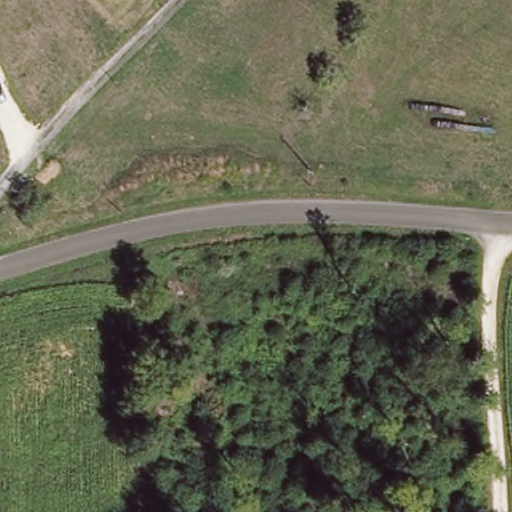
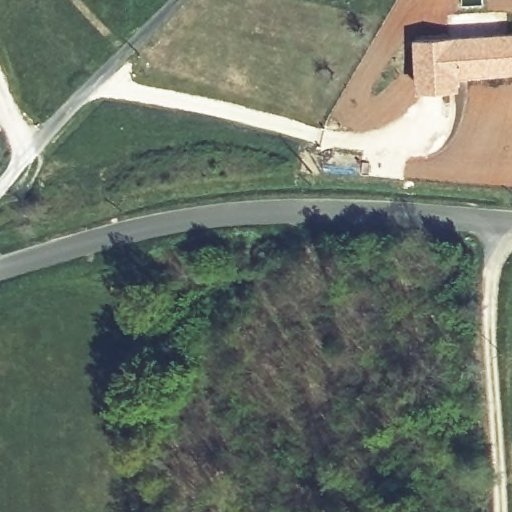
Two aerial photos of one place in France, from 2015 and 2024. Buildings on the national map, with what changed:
new [(462,74),(462,86),(419,89),(415,37),(512,32),(512,71),(462,74)]

